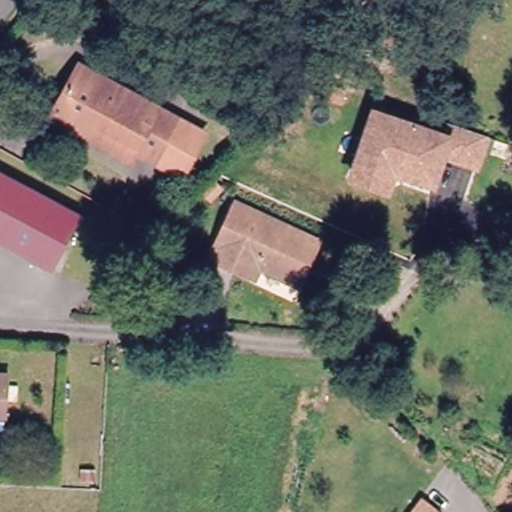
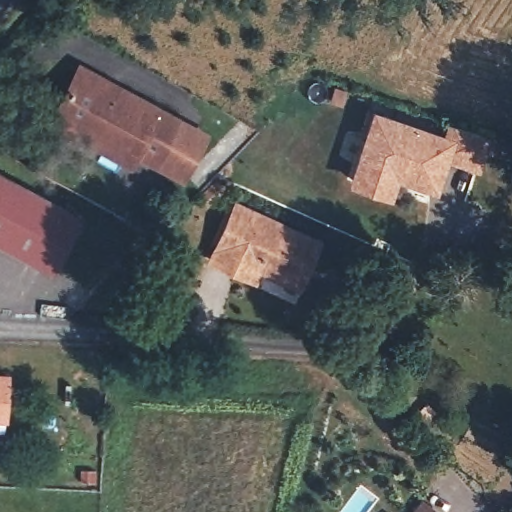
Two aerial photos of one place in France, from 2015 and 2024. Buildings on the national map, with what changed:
unchanged [(75,69),(158,108),(138,153),(127,147),(54,108),(75,69)]
unchanged [(54,108),(127,147),(120,160),(47,119),(54,108)]
unchanged [(212,138),(186,188),(132,167),(138,153),(158,108),(212,138)]
unchanged [(436,190),(416,185),(417,180),(397,174),(391,195),(356,185),(375,119),(449,140),(453,127),(453,126),(464,130),(467,131),(489,138),(480,166),(455,159),(445,156),(436,190)]
unchanged [(64,242),(58,239),(40,270),(0,248),(0,182),(75,222),(64,242)]
unchanged [(190,207),(203,195),(212,204),(199,216),(190,207)]
unchanged [(217,266),(239,210),(325,243),(308,288),(267,272),(263,284),(243,276),(217,266)]
unchanged [(0,372),(11,372),(12,420),(12,433),(0,433),(0,372)]
unchanged [(426,508),(431,512),(423,512),(426,508)]

